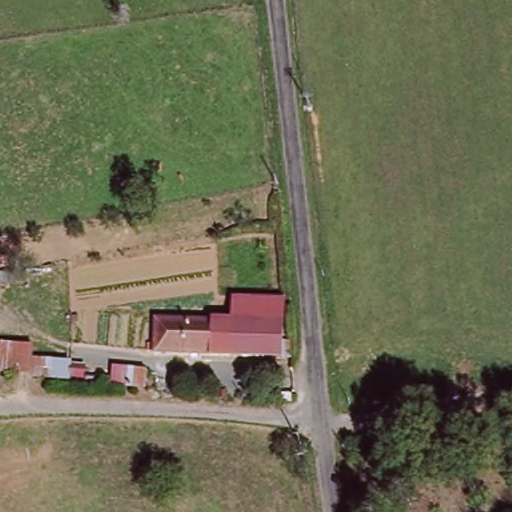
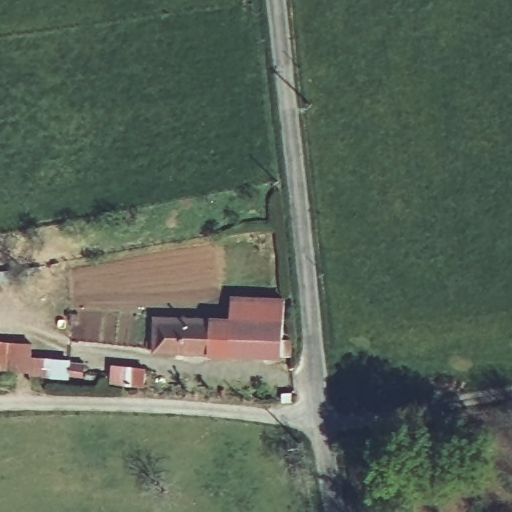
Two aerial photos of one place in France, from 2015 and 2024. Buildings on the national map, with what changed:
unchanged [(239,297),(290,298),(289,325),(237,323),(239,297)]
unchanged [(164,354),(164,320),(237,323),(236,357),(164,354)]
unchanged [(289,325),(288,359),(236,357),(237,323),(289,325)]
unchanged [(67,380),(37,376),(0,371),(0,341),(39,347),(39,357),(69,357),(67,380)]
unchanged [(144,390),(112,390),(112,366),(144,367),(144,390)]

